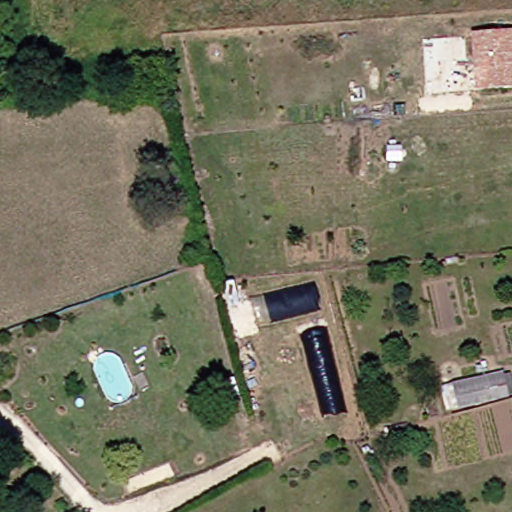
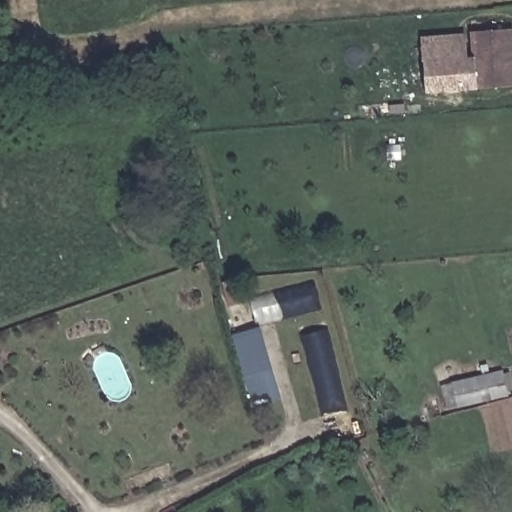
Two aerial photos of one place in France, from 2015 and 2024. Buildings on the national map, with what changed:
unchanged [(512,30),(512,87),(477,90),(474,33),(512,30)]
new [(422,36),(466,34),(468,58),(475,57),(477,90),(426,94),(422,36)]
new [(260,330),(281,400),(253,408),(249,394),(254,393),(253,390),(248,392),(232,338),(260,330)]
unchanged [(491,399),(476,403),(477,407),(469,409),(463,411),(457,384),(472,380),(474,390),(489,388),(491,399)]

